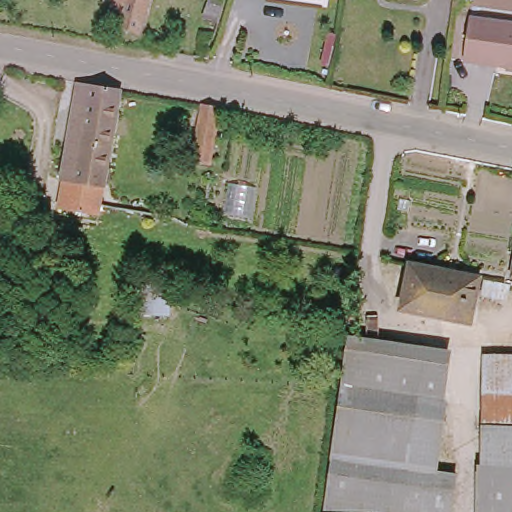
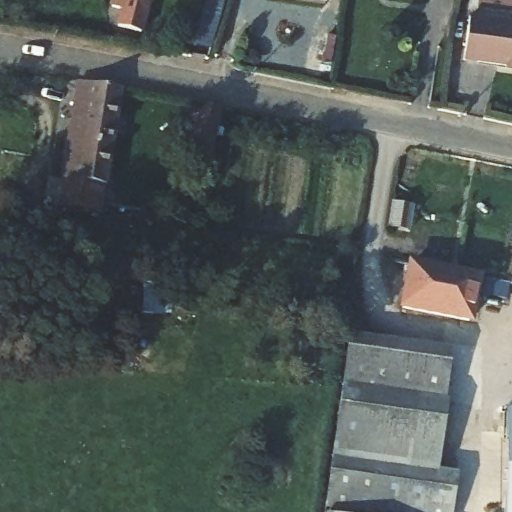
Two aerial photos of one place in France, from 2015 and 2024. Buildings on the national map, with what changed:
unchanged [(134,38),(109,31),(114,15),(104,12),(107,0),(143,0),(134,38)]
unchanged [(222,5),(215,24),(202,20),(207,0),(223,0),(222,5)]
unchanged [(512,65),(465,57),(471,14),(512,20),(512,65)]
unchanged [(77,77),(119,83),(100,201),(100,211),(57,205),(62,177),(77,77)]
unchanged [(220,111),(215,153),(220,154),(219,165),(219,167),(213,167),(212,170),(194,166),(202,107),(220,111)]
unchanged [(479,276),(470,318),(402,303),(412,261),(479,276)]
unchanged [(512,278),(509,293),(487,288),(490,273),(512,278)]
unchanged [(448,363),(441,411),(341,395),(344,381),(349,346),(448,363)]
demolished [(512,350),(512,401),(479,396),(483,348),(512,350)]
unchanged [(441,411),(432,485),(330,468),(341,395),(441,411)]
demolished [(512,512),(469,512),(479,396),(512,401),(512,512)]
new [(512,512),(503,512),(505,408),(512,409),(512,512)]
unchanged [(455,488),(452,512),(323,512),(330,468),(432,485),(455,488)]

